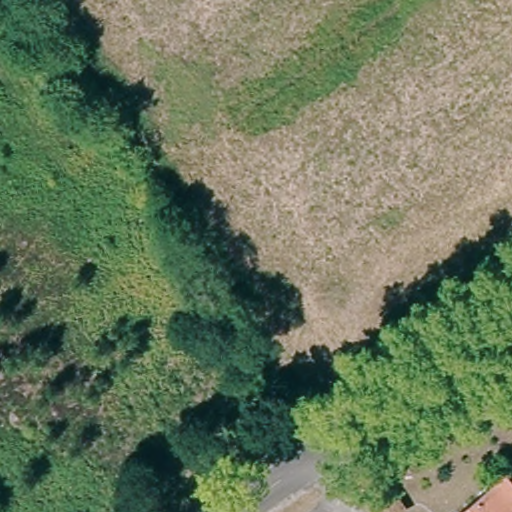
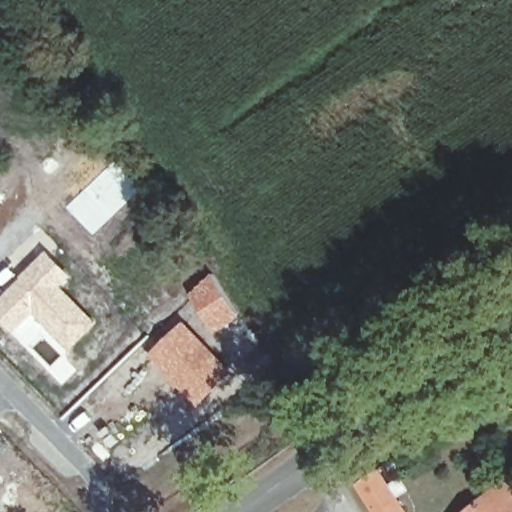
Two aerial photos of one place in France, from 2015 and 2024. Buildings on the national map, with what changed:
new [(115,160),(141,188),(91,234),(64,207),(115,160)]
new [(74,277),(64,287),(97,322),(69,351),(33,315),(15,334),(0,320),(0,297),(46,250),(74,277)]
new [(212,274),(241,315),(217,334),(190,292),(212,274)]
new [(185,321),(235,374),(192,411),(149,355),(185,321)]
unchanged [(406,512),(377,512),(358,483),(378,469),(406,512)]
unchanged [(506,481),(512,488),(512,512),(468,512),(506,481)]

